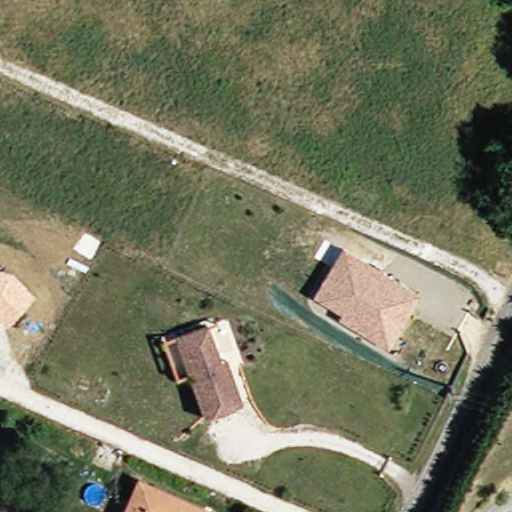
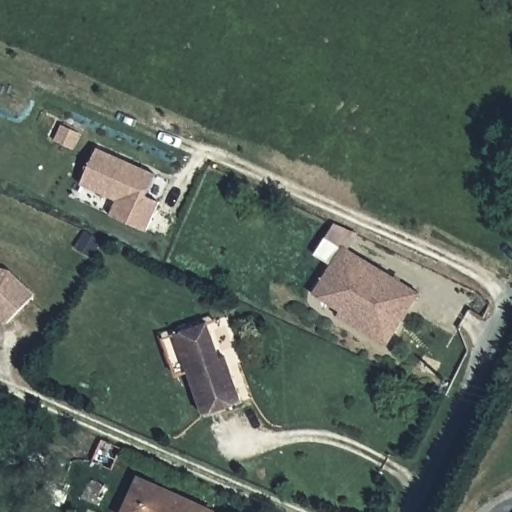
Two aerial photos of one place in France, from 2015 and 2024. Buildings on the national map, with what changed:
new [(156,175),(147,198),(160,204),(147,233),(108,217),(116,202),(80,186),(97,150),(156,175)]
unchanged [(339,311),(312,294),(342,248),(419,293),(389,345),(334,319),(339,311)]
unchanged [(8,270),(34,297),(6,326),(0,320),(0,268),(8,270)]
unchanged [(222,362),(227,360),(230,370),(239,407),(200,416),(191,373),(178,375),(169,336),(182,332),(214,323),(222,362)]
unchanged [(132,479),(206,512),(119,512),(132,479)]

